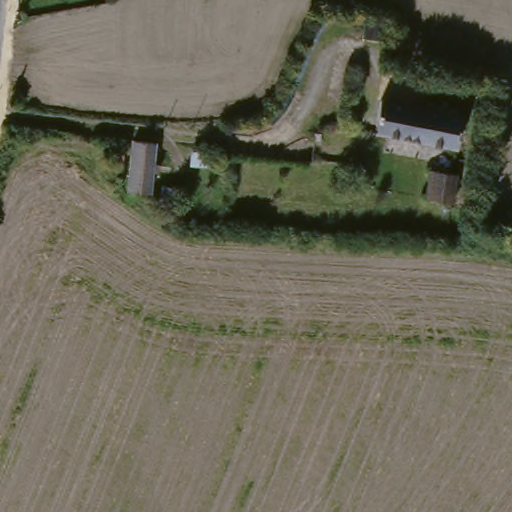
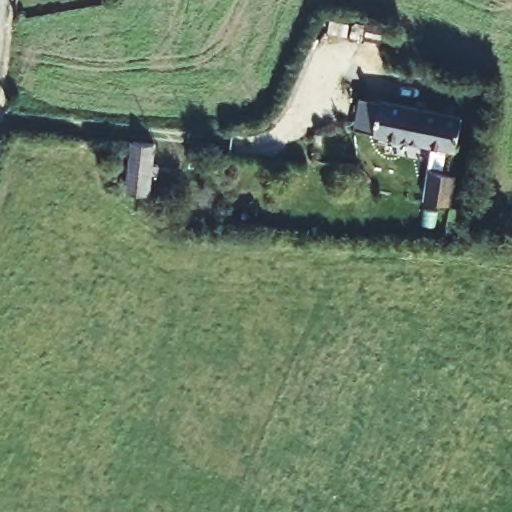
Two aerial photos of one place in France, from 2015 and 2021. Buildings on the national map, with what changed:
unchanged [(455,151),(436,148),(373,135),(376,116),(378,105),(382,105),(460,121),(455,151)]
unchanged [(127,192),(127,141),(151,144),(148,195),(127,192)]
unchanged [(455,174),(450,206),(424,202),(428,170),(455,174)]

